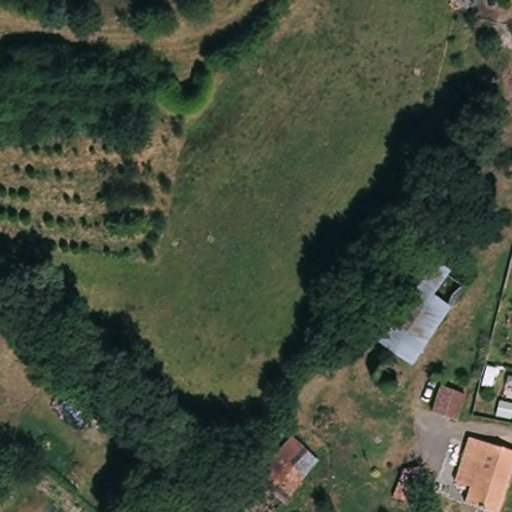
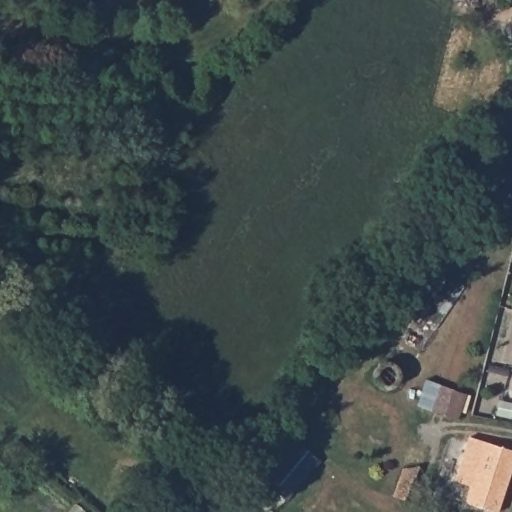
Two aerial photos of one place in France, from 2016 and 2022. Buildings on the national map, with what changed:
unchanged [(420,256),(464,287),(410,365),(366,335),(420,256)]
unchanged [(378,385),(378,384),(379,384),(379,383),(379,382),(379,381),(379,380),(380,380),(380,379),(380,378),(381,378),(381,377),(381,376),(382,376),(382,375),(383,375),(384,375),(384,374),(385,373),(386,373),(386,372),(387,372),(388,372),(388,371),(389,371),(390,371),(391,371),(392,370),(393,370),(395,370),(395,371),(396,371),(397,371),(398,371),(399,371),(399,372),(400,372),(401,372),(401,373),(402,373),(403,373),(403,374),(403,375),(404,375),(405,375),(405,376),(406,376),(406,377),(406,378),(407,378),(407,379),(407,380),(408,380),(408,381),(408,382),(408,383),(408,384),(408,385),(409,385),(409,386),(408,387),(408,388),(408,389),(408,390),(408,391),(407,391),(407,392),(407,393),(406,393),(406,394),(406,395),(405,395),(405,396),(404,396),(404,397),(403,397),(402,398),(401,398),(401,399),(400,399),(400,400),(399,400),(398,400),(397,400),(396,400),(395,400),(395,401),(392,400),(391,400),(390,400),(389,400),(388,400),(387,400),(387,399),(386,399),(386,398),(385,398),(384,397),(383,397),(383,396),(382,396),(382,395),(381,395),(381,394),(381,393),(380,393),(380,392),(380,391),(379,391),(379,390),(379,389),(379,388),(379,387),(378,387),(378,386),(378,385)]
unchanged [(447,383),(468,392),(458,420),(435,411),(447,383)]
unchanged [(321,458),(302,478),(306,482),(286,505),(255,476),(294,432),(321,458)]
unchanged [(485,446),(488,445),(512,454),(512,477),(499,512),(494,512),(464,500),(473,476),(461,470),(473,442),(485,446)]
unchanged [(404,465),(424,465),(421,478),(415,478),(409,496),(394,490),(404,465)]

